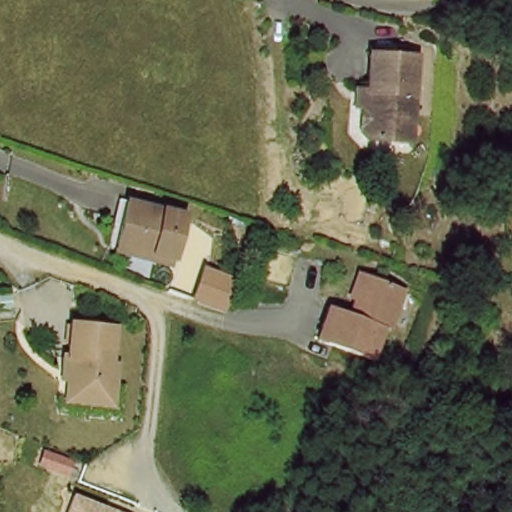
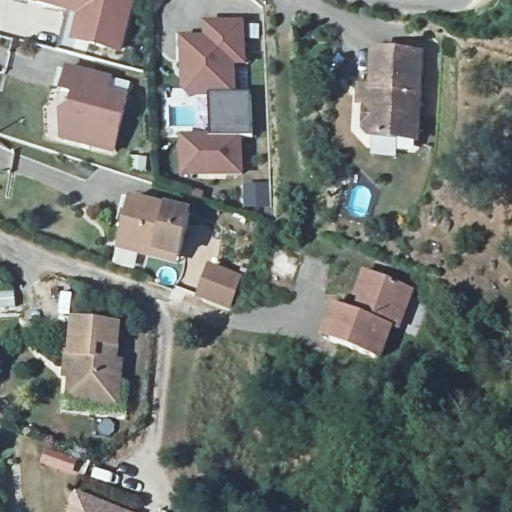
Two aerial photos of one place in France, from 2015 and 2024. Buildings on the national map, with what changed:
new [(78,16),(22,0),(137,0),(122,56),(72,43),(78,16)]
new [(183,179),(181,136),(209,134),(207,99),(191,100),(181,90),(179,39),(205,37),(205,21),(245,20),(247,65),(235,66),(236,94),(250,94),(252,136),(240,136),(242,175),(183,179)]
unchanged [(404,139),(374,137),(369,134),(371,106),(361,105),(361,89),(377,91),(380,53),(425,55),(422,119),(421,141),(404,139)]
new [(113,154),(60,139),(61,93),(68,68),(111,79),(134,86),(130,98),(113,154)]
unchanged [(200,212),(186,263),(125,247),(121,242),(133,195),(200,212)]
new [(197,299),(210,264),(244,277),(231,311),(197,299)]
unchanged [(411,282),(402,303),(396,325),(391,324),(380,355),(323,334),(336,301),(356,308),(361,294),(355,291),(365,267),(371,269),(405,280),(411,282)]
unchanged [(107,415),(70,409),(73,388),(66,387),(68,376),(70,364),(75,365),(80,332),(123,339),(118,367),(117,375),(123,376),(120,396),(117,417),(107,415)]
unchanged [(81,493),(128,512),(73,512),(81,493)]

